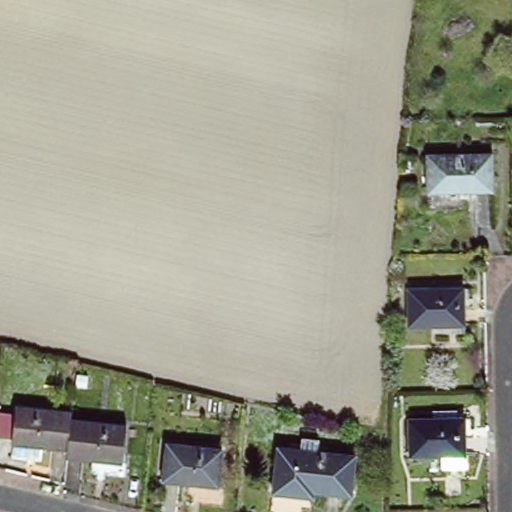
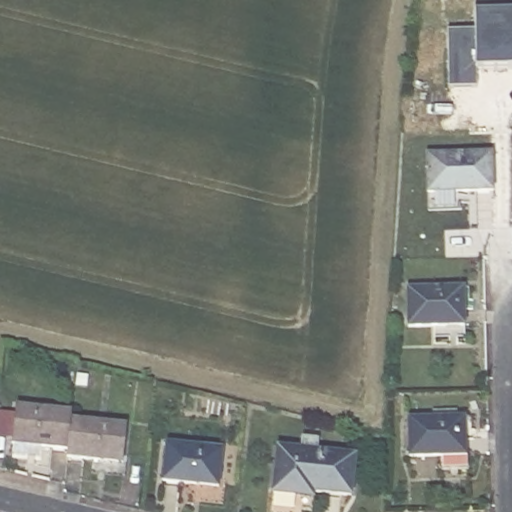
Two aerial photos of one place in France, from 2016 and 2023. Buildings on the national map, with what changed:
new [(479,86),(449,87),(447,30),(475,30),(475,12),(512,12),(512,70),(477,70),(479,86)]
unchanged [(427,161),(489,159),(490,195),(429,197),(427,161)]
unchanged [(467,285),(467,320),(415,321),(414,285),(467,285)]
unchanged [(17,443),(22,407),(77,414),(75,421),(72,450),(17,443)]
unchanged [(466,415),(467,466),(441,467),(440,454),(414,455),(413,416),(466,415)]
unchanged [(72,450),(75,421),(127,427),(124,462),(72,457),(72,450)]
unchanged [(353,447),(352,487),(314,487),(314,491),(275,490),(277,445),(353,447)]
unchanged [(174,447),(227,453),(222,490),(170,482),(174,447)]

